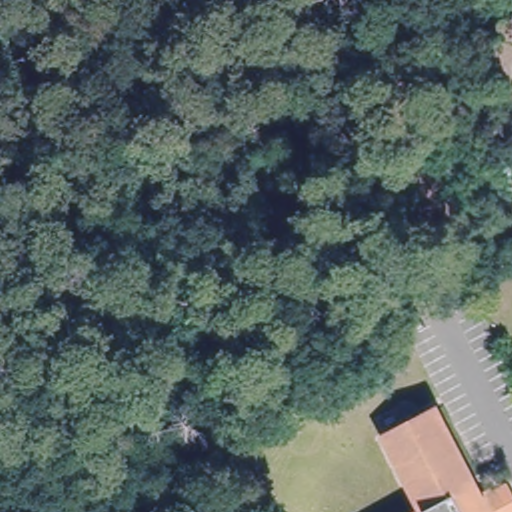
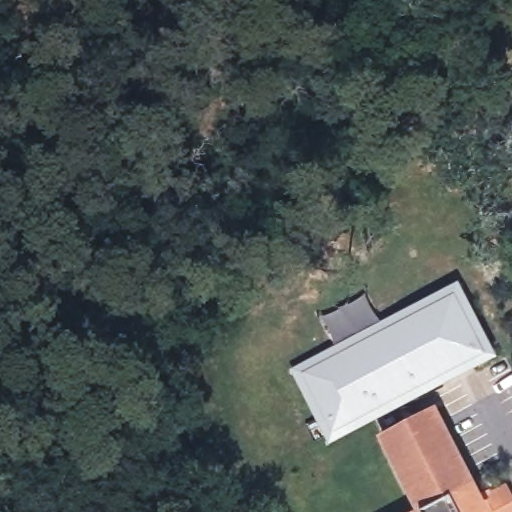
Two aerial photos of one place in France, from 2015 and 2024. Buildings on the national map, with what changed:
new [(497,358),(331,446),(291,369),(459,283),(497,358)]
unchanged [(424,508),(384,433),(435,407),(480,490),(489,486),(504,512),(416,512),(424,508)]

